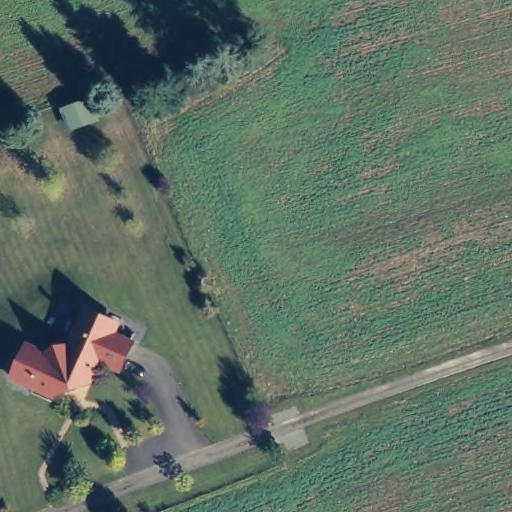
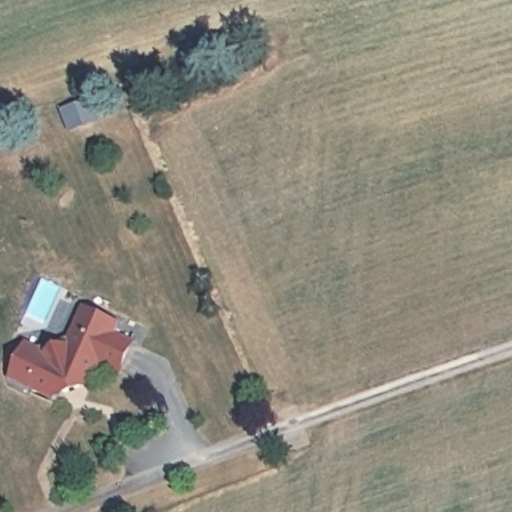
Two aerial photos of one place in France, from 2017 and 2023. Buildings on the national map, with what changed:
unchanged [(61,349),(81,307),(113,320),(109,329),(125,338),(113,365),(96,359),(86,379),(80,377),(78,383),(59,389),(52,386),(49,391),(45,392),(9,377),(13,369),(24,343),(51,353),(61,349)]

